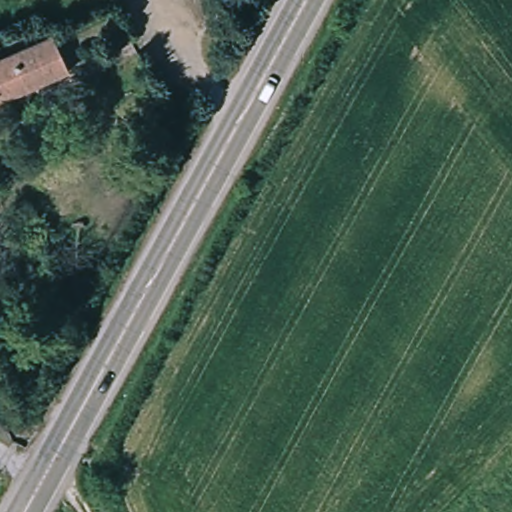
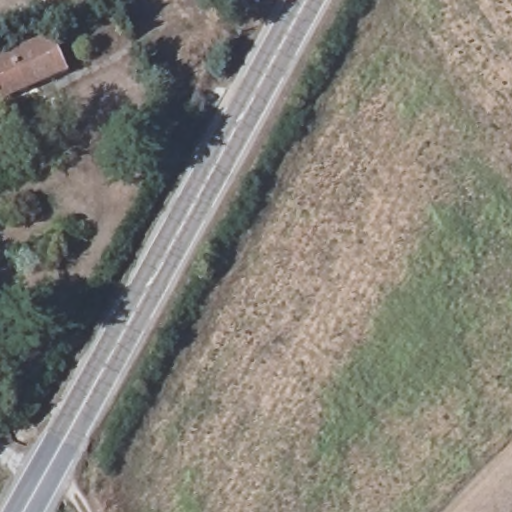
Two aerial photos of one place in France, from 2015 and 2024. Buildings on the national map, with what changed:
unchanged [(49,33),(62,71),(0,98),(0,54),(49,33)]

